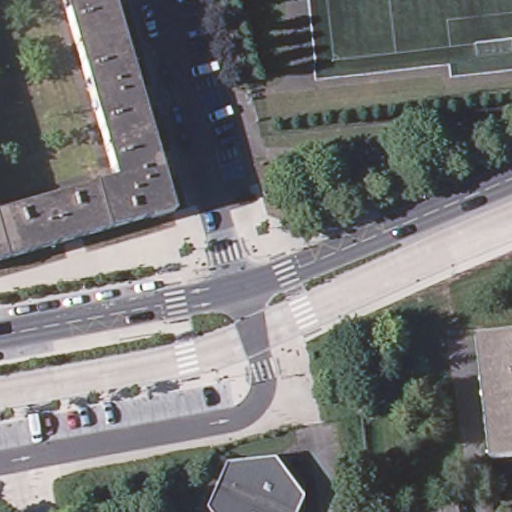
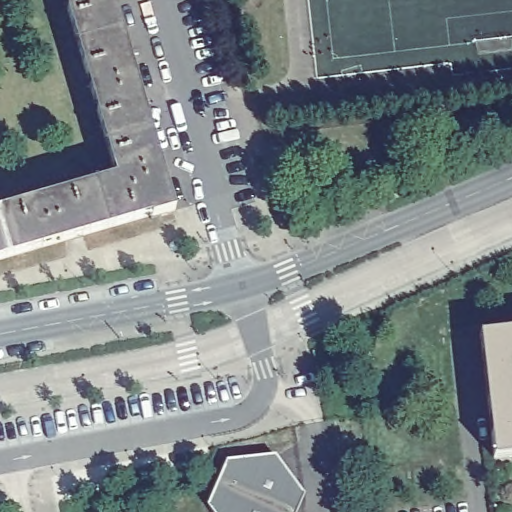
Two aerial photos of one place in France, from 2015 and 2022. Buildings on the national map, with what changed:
unchanged [(59,0),(106,0),(115,35),(73,47),(59,0)]
unchanged [(73,47),(115,35),(145,136),(103,149),(73,47)]
unchanged [(112,178),(103,149),(145,136),(167,215),(143,222),(142,218),(105,229),(90,184),(112,178)]
unchanged [(90,184),(105,229),(2,259),(0,251),(0,210),(90,184)]
unchanged [(2,259),(0,260),(0,251),(2,259)]
unchanged [(512,335),(512,461),(496,463),(481,338),(512,335)]
unchanged [(228,458),(277,453),(287,468),(295,480),(305,493),(296,512),(214,512),(207,502),(228,458)]

